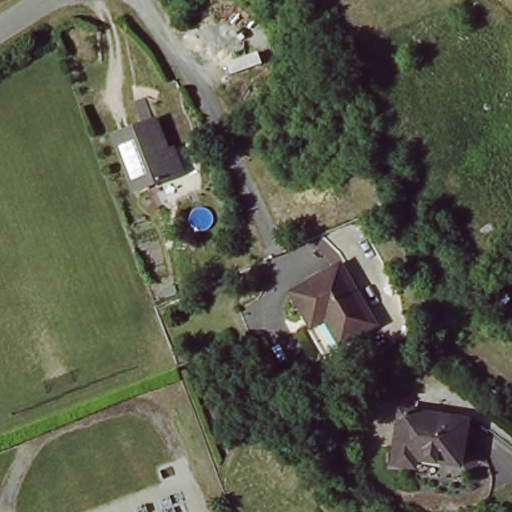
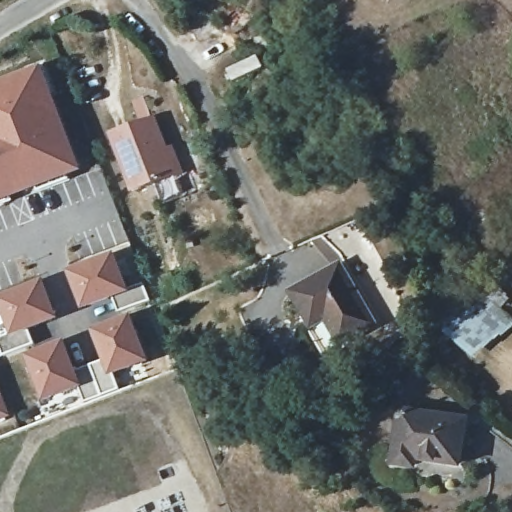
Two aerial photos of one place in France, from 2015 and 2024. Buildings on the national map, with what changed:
new [(41,66),(82,171),(0,204),(0,83),(41,66)]
unchanged [(184,175),(177,177),(133,192),(113,135),(156,119),(160,129),(167,152),(175,149),(184,175)]
new [(115,254),(129,290),(144,283),(150,301),(119,313),(115,299),(85,312),(68,272),(115,254)]
unchanged [(307,313),(295,292),(340,265),(376,324),(344,343),(329,317),(315,326),(307,313)]
new [(10,335),(0,307),(0,297),(45,281),(60,321),(31,331),(35,343),(3,356),(0,346),(0,338),(10,335)]
new [(66,341),(78,372),(104,360),(93,330),(130,315),(150,363),(117,375),(121,390),(85,404),(80,391),(46,405),(27,357),(66,341)]
new [(8,423),(0,426),(0,401),(8,423)]
unchanged [(470,423),(465,456),(463,466),(457,465),(420,457),(417,465),(395,460),(407,409),(470,423)]

